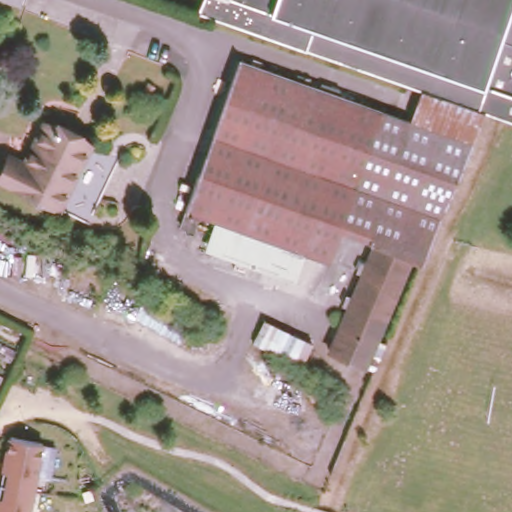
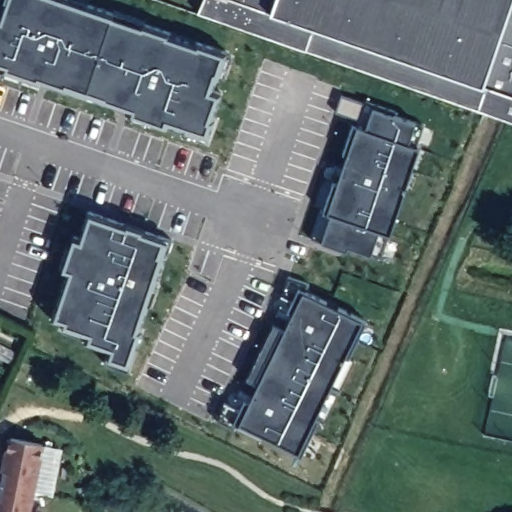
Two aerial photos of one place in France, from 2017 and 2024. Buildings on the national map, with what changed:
new [(224,54),(211,92),(220,95),(204,146),(0,71),(0,0),(66,0),(224,54)]
demolished [(19,4),(9,0),(21,0),(19,4)]
unchanged [(199,7),(201,0),(512,0),(512,41),(485,107),(421,85),(254,27),(199,7)]
unchanged [(512,117),(485,107),(512,41),(512,117)]
demolished [(351,325),(340,320),(374,239),(377,231),(370,229),(367,236),(340,226),(328,257),(198,211),(192,226),(180,222),(238,56),(410,117),(470,139),(420,258),(410,255),(370,348),(365,360),(340,350),(346,336),(351,325)]
new [(425,126),(378,255),(316,232),(365,103),(425,126)]
demolished [(0,176),(0,157),(4,149),(21,157),(30,140),(27,139),(38,116),(114,152),(85,212),(82,217),(0,176)]
new [(176,241),(133,366),(91,352),(97,339),(46,322),(82,207),(176,241)]
new [(365,327),(300,457),(236,425),(301,290),(365,327)]
demolished [(264,317),(311,340),(305,353),(301,362),(253,340),(264,317)]
unchanged [(28,512),(0,512),(0,466),(5,438),(40,445),(28,512)]

